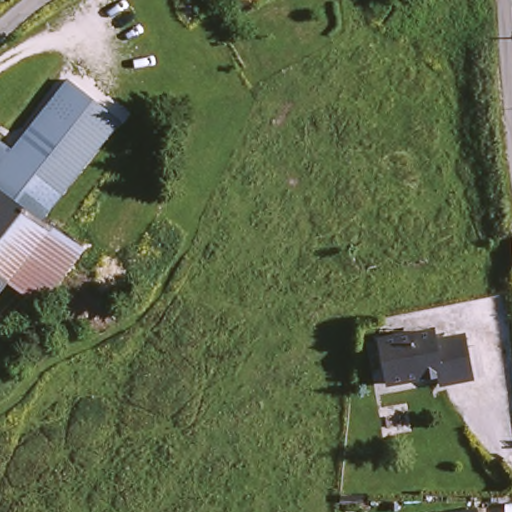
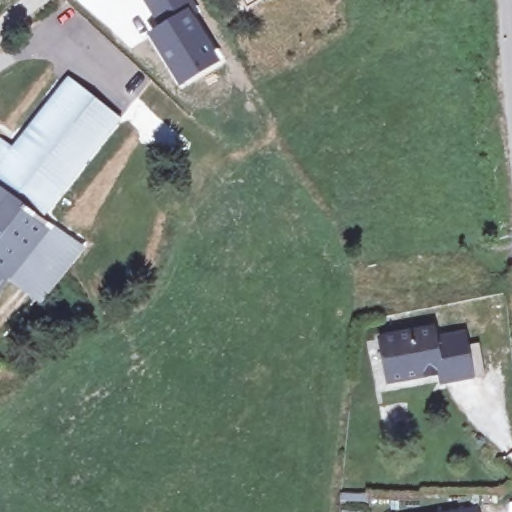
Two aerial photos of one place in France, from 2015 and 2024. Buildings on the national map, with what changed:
new [(192,6),(157,25),(142,0),(194,0),(196,4),(192,6)]
new [(157,25),(192,6),(222,61),(179,87),(145,32),(157,25)]
unchanged [(120,125),(50,214),(41,208),(0,180),(0,168),(67,85),(120,125)]
unchanged [(0,298),(0,180),(41,208),(50,214),(42,225),(81,255),(35,308),(9,287),(0,298)]
unchanged [(389,372),(384,341),(436,335),(438,343),(467,338),(473,381),(443,385),(442,376),(407,381),(390,385),(389,372)]

